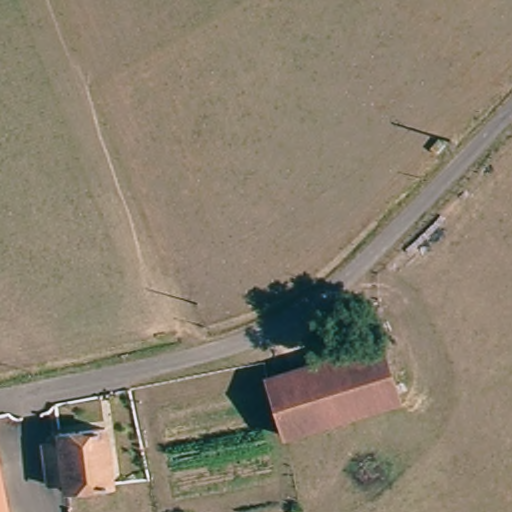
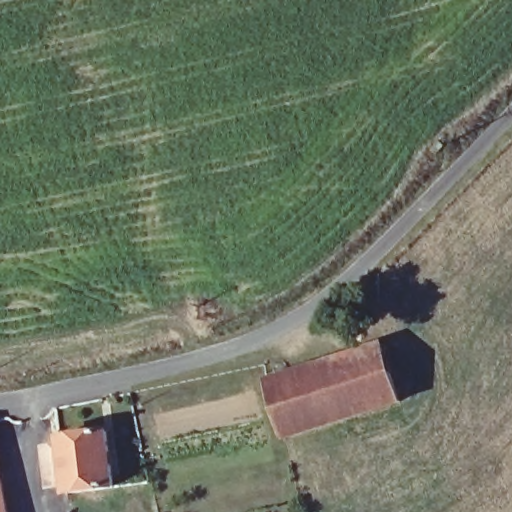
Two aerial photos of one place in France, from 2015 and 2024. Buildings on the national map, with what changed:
unchanged [(295,430),(288,407),(347,393),(341,357),(388,347),(398,408),(295,430)]
unchanged [(341,357),(347,393),(288,407),(295,430),(280,433),(268,372),(341,357)]
unchanged [(71,495),(64,496),(63,482),(45,485),(39,446),(60,442),(60,437),(109,430),(118,489),(71,495)]
unchanged [(0,512),(0,442),(13,512),(0,512)]

